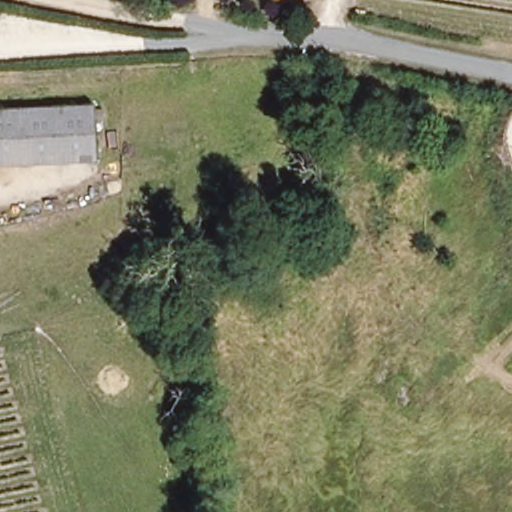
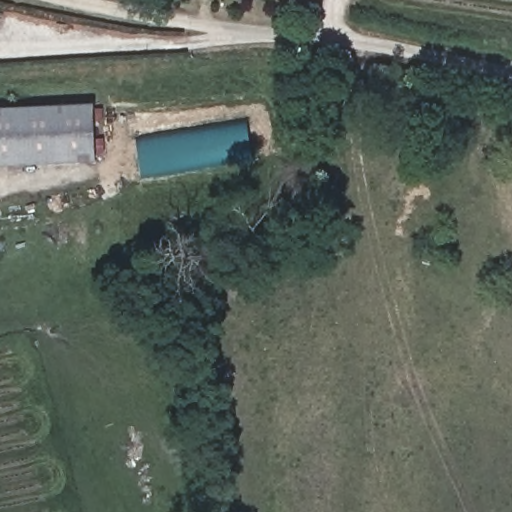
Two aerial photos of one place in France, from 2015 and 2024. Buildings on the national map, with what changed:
unchanged [(92,162),(0,166),(0,110),(89,104),(92,162)]
new [(246,126),(250,159),(141,178),(137,141),(246,126)]

